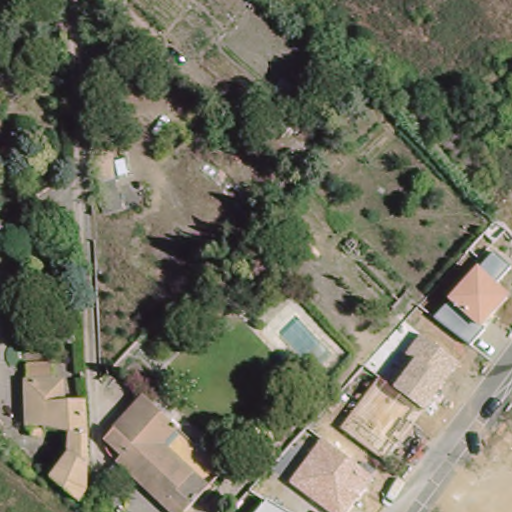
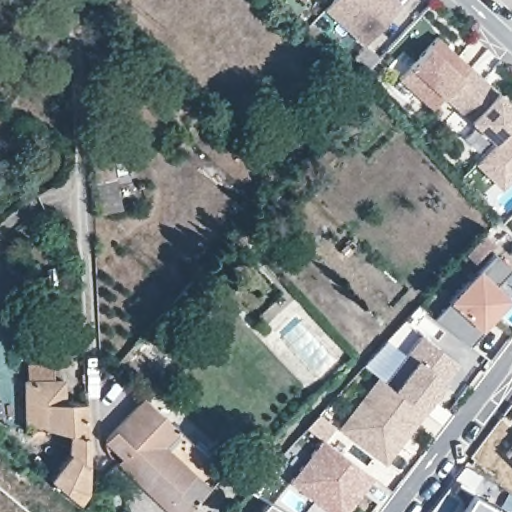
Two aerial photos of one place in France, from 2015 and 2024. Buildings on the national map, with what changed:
new [(329,0),(401,0),(366,40),(326,4),(329,0)]
new [(439,37),(512,105),(512,124),(495,144),(444,98),(433,109),(400,81),(439,37)]
demolished [(429,91),(409,101),(393,77),(414,69),(429,91)]
new [(504,189),(477,163),(495,144),(512,124),(512,180),(504,189)]
unchanged [(275,215),(237,256),(219,246),(263,203),(275,215)]
unchanged [(436,319),(451,303),(448,301),(477,269),(494,253),(510,266),(496,284),(509,298),(482,328),(469,347),(436,319)]
unchanged [(342,428),(381,377),(387,382),(423,335),(459,364),(446,381),(424,410),(387,461),(342,428)]
unchanged [(54,399),(84,394),(85,437),(85,485),(75,501),(49,478),(71,453),(69,437),(49,429),(47,428),(21,430),(14,381),(13,363),(43,360),(44,377),(51,376),(54,399)]
unchanged [(111,447),(111,455),(116,460),(113,463),(106,456),(105,443),(106,442),(128,415),(146,396),(163,413),(180,428),(162,446),(205,485),(181,510),(180,512),(169,512),(133,480),(139,473),(111,447)]
unchanged [(324,439),(374,479),(346,512),(330,512),(291,483),(324,439)]
new [(502,462),(512,451),(512,471),(502,462)]
new [(503,512),(457,512),(469,492),(503,512)]
unchanged [(286,512),(257,512),(267,501),(286,512)]

